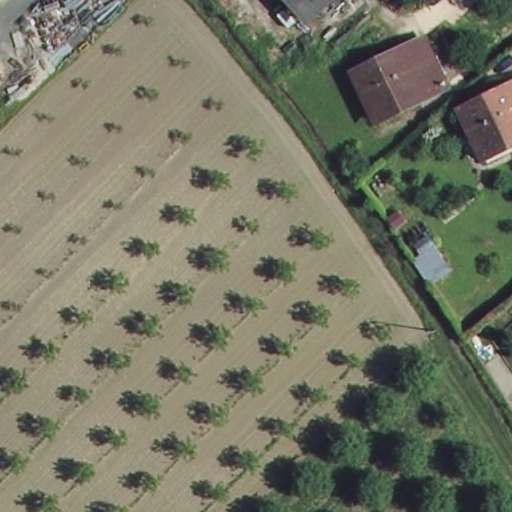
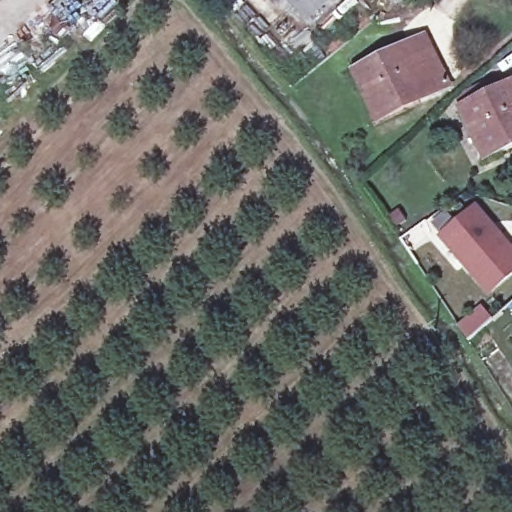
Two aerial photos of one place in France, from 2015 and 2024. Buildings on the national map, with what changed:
unchanged [(317,20),(298,0),(339,0),(317,20)]
unchanged [(359,71),(436,42),(454,89),(377,118),(359,71)]
unchanged [(484,156),(465,110),(512,92),(512,145),(484,156)]
new [(437,236),(474,204),(512,247),(512,276),(489,295),(437,236)]

